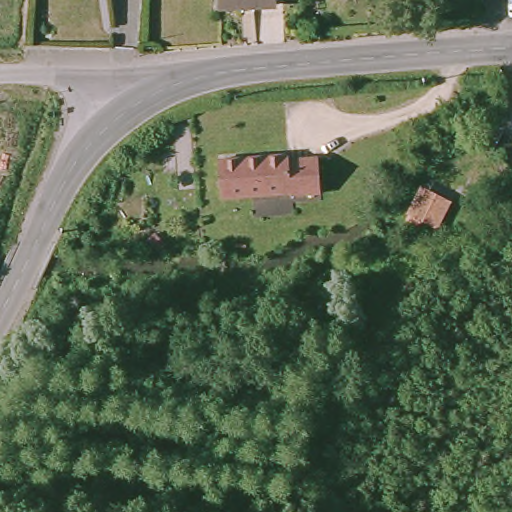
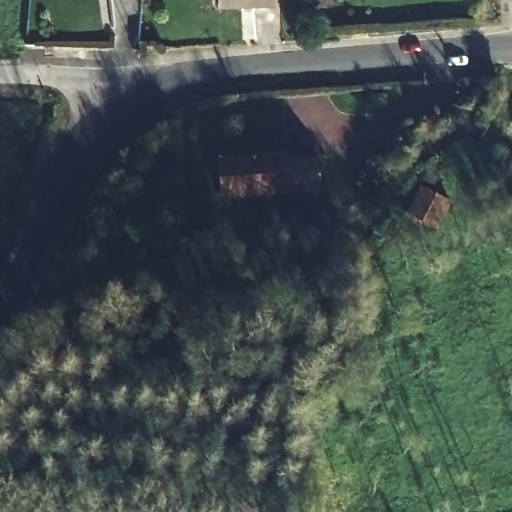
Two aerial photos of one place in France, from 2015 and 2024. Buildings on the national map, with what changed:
unchanged [(216,6),(216,0),(274,0),(274,6),(216,6)]
unchanged [(292,155),(292,161),(321,159),(323,195),(293,196),(293,193),(223,198),(220,159),(292,155)]
unchanged [(453,204),(438,235),(402,220),(417,188),(453,204)]

